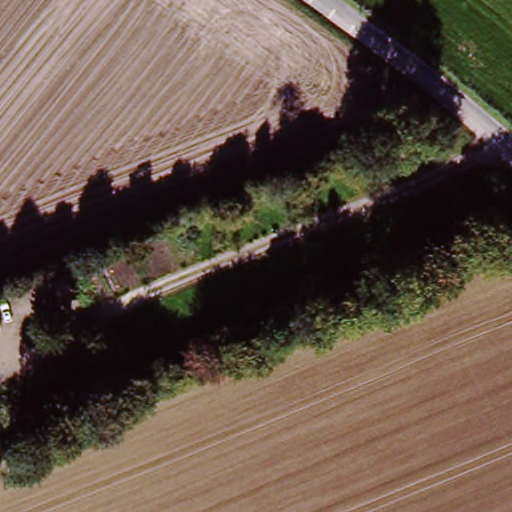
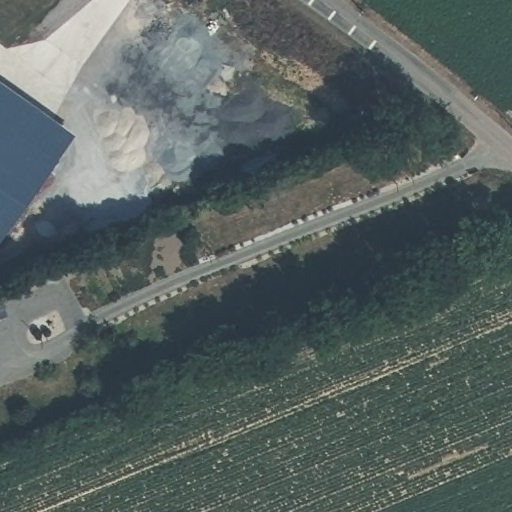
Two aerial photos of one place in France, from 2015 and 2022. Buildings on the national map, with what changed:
new [(76,131),(0,237),(0,78),(76,131)]

